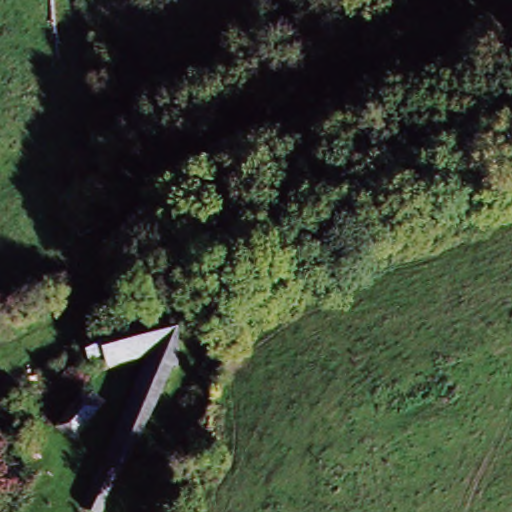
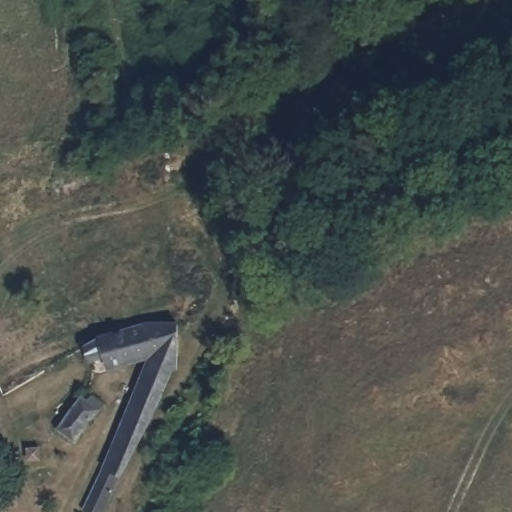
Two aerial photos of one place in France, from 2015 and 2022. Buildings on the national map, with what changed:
unchanged [(74,234),(63,212),(85,201),(96,224),(74,234)]
unchanged [(148,229),(141,232),(128,239),(117,244),(114,216),(120,215),(144,213),(148,229)]
unchanged [(106,465),(150,375),(143,365),(107,371),(101,360),(100,361),(77,368),(68,353),(97,344),(172,321),(175,376),(168,377),(102,512),(81,512),(103,464),(106,465)]
unchanged [(87,390),(97,395),(74,439),(58,431),(77,397),(82,400),(87,390)]

